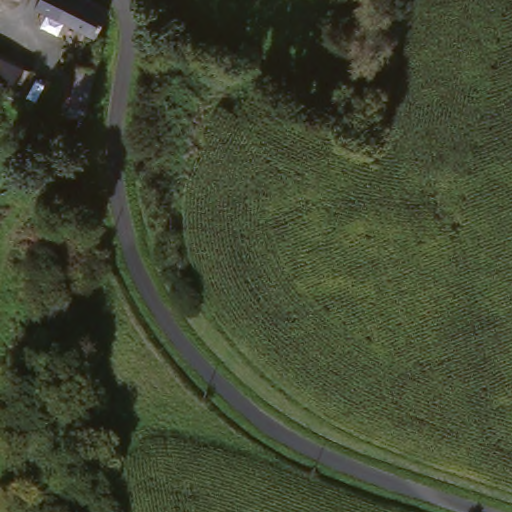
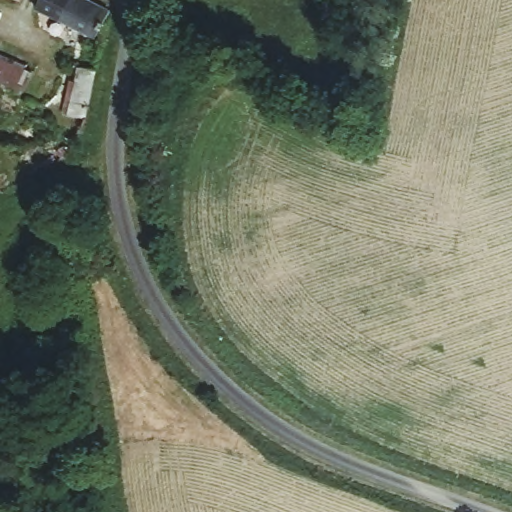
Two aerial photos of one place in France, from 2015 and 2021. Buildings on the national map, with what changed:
unchanged [(8,0),(21,0),(20,4),(8,0)]
unchanged [(86,34),(35,7),(39,0),(80,0),(101,11),(86,34)]
unchanged [(0,90),(0,58),(28,71),(16,97),(9,93),(0,90)]
unchanged [(68,104),(73,70),(91,72),(85,106),(68,104)]

